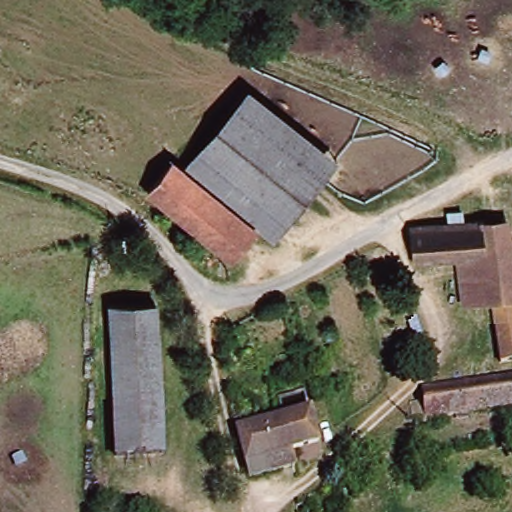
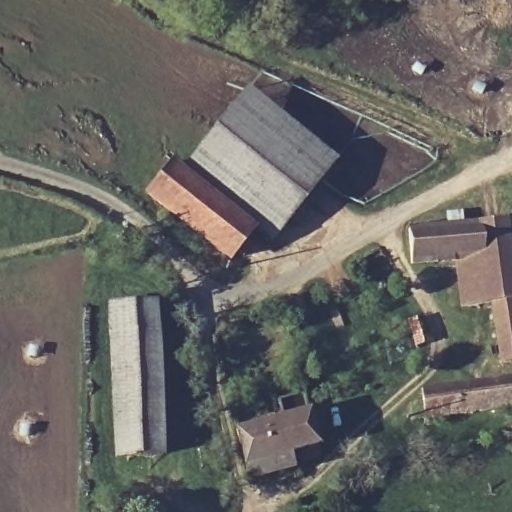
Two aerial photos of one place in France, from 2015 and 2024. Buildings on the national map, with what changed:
unchanged [(323,156),(259,232),(173,161),(236,85),(323,156)]
unchanged [(139,182),(158,155),(241,222),(219,249),(139,182)]
unchanged [(455,258),(412,263),(407,231),(489,220),(503,216),(512,277),(512,363),(499,364),(488,302),(461,305),(455,258)]
unchanged [(159,457),(115,458),(113,311),(156,311),(159,457)]
unchanged [(414,408),(425,403),(423,390),(512,380),(512,409),(416,422),(414,408)]
unchanged [(288,471),(247,481),(233,431),(306,420),(316,465),(296,468),(294,457),(286,458),(288,471)]

